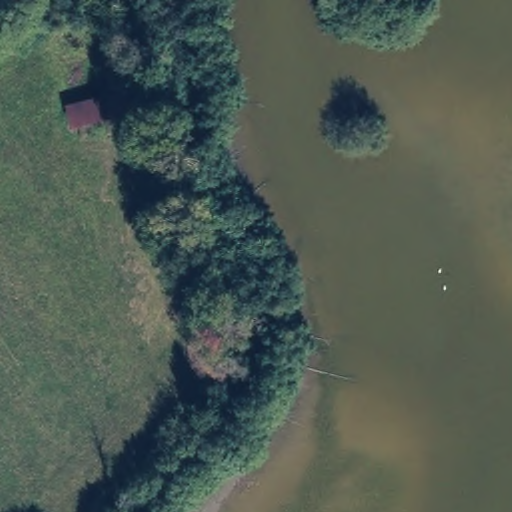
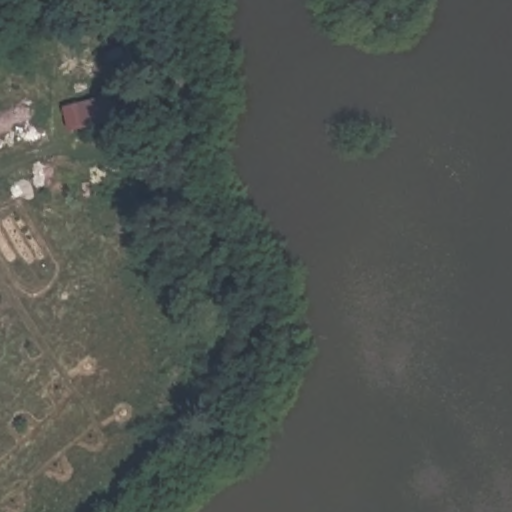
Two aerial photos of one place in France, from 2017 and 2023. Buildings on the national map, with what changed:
unchanged [(124,93),(127,121),(66,134),(64,111),(124,93)]

